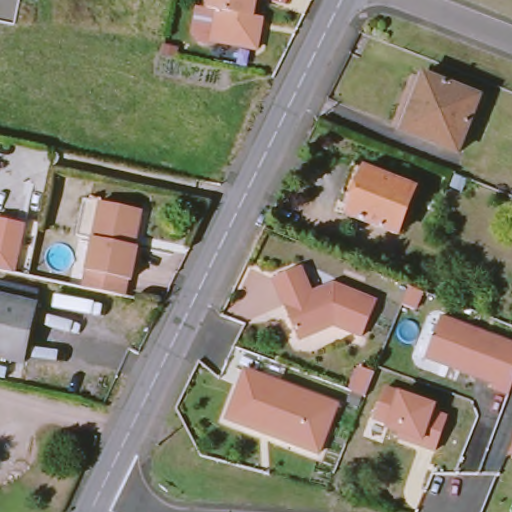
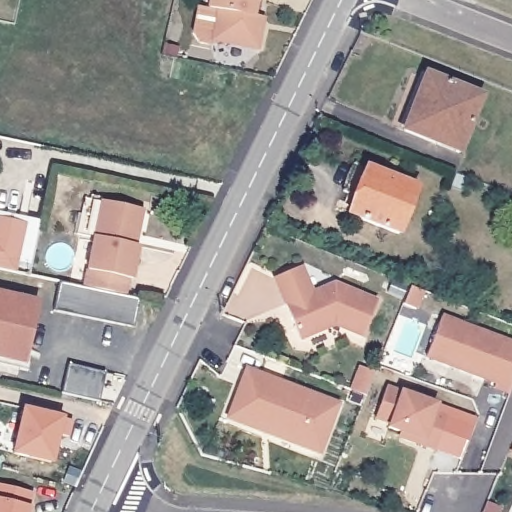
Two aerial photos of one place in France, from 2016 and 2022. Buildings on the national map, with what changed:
unchanged [(198,32),(202,10),(206,7),(212,8),(213,0),(260,0),(257,15),(263,16),(262,25),(265,30),(262,48),(223,41),(215,43),(203,41),(198,32)]
unchanged [(460,152),(401,129),(423,73),(482,96),(460,152)]
unchanged [(399,233),(347,213),(363,167),(417,187),(399,233)]
unchanged [(79,272),(98,194),(147,204),(136,281),(134,280),(130,298),(85,288),(89,273),(79,272)]
unchanged [(15,270),(0,267),(0,218),(25,224),(15,270)]
unchanged [(303,266),(315,292),(337,282),(378,298),(365,334),(333,321),(327,323),(327,328),(303,338),(277,278),(303,266)]
unchanged [(35,303),(22,360),(0,355),(0,295),(35,303)]
unchanged [(508,392),(507,391),(492,385),(495,381),(460,367),(462,363),(453,360),(447,363),(426,354),(441,315),(512,342),(512,383),(510,388),(508,392)]
new [(67,364),(104,372),(98,400),(60,391),(67,364)]
unchanged [(378,370),(370,392),(355,387),(364,364),(378,370)]
unchanged [(323,454),(250,426),(231,419),(240,395),(250,370),(342,405),(323,454)]
unchanged [(385,389),(435,407),(432,413),(447,419),(435,452),(405,440),(406,436),(387,429),(389,425),(375,420),(385,389)]
new [(25,407),(73,418),(70,434),(60,431),(54,460),(15,451),(25,407)]
new [(33,491),(28,512),(0,512),(0,483),(33,491)]

